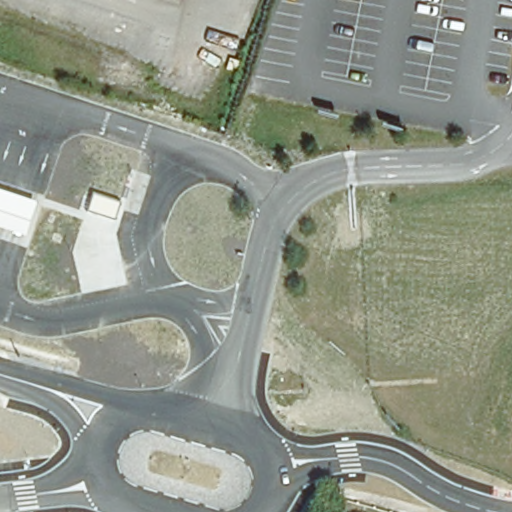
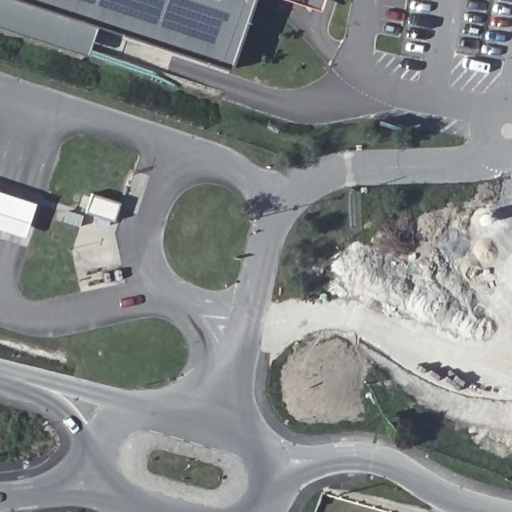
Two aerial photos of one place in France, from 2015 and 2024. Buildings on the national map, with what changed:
new [(97,26),(87,55),(0,25),(0,0),(254,0),(229,71),(97,26)]
new [(290,0),(323,0),(319,10),(290,0)]
new [(121,198),(114,217),(86,207),(92,189),(121,198)]
unchanged [(25,237),(0,229),(0,191),(35,203),(25,237)]
new [(81,215),(79,222),(62,217),(64,209),(81,215)]

